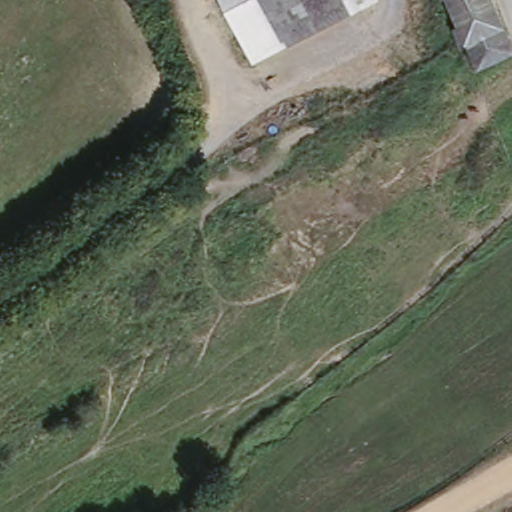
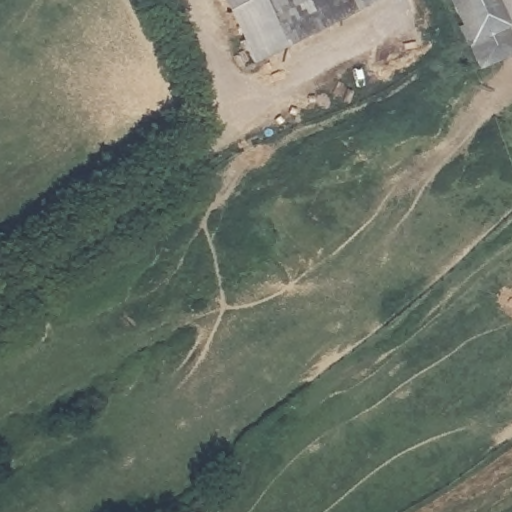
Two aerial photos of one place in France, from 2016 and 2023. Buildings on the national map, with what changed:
unchanged [(217,0),(369,0),(247,64),(217,0)]
unchanged [(458,24),(448,0),(495,0),(512,37),(512,48),(478,64),(467,40),(458,44),(451,26),(458,24)]

